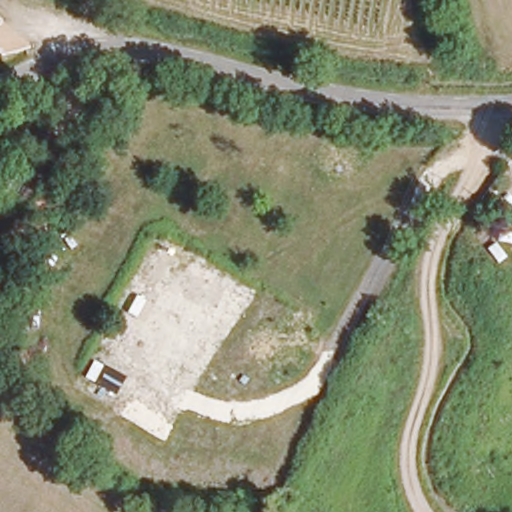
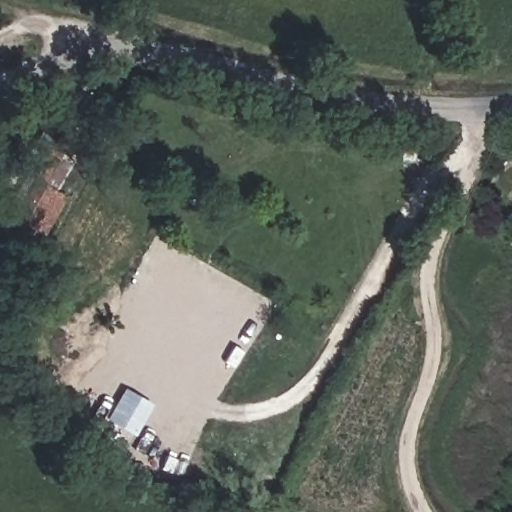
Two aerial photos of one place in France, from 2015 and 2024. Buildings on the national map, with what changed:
unchanged [(20,180),(51,197),(29,237),(0,221),(0,214),(20,180)]
new [(134,434),(105,417),(122,387),(151,403),(134,434)]

